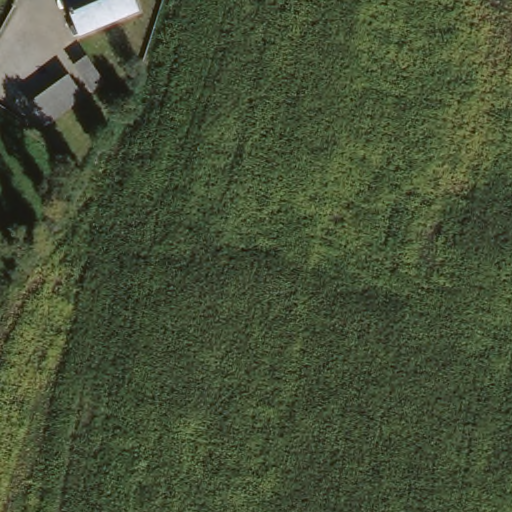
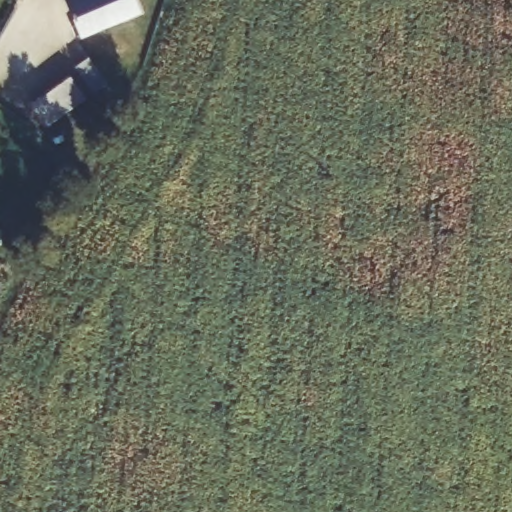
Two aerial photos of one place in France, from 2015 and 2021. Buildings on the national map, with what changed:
unchanged [(88,34),(70,0),(139,0),(143,7),(88,34)]
unchanged [(103,75),(87,82),(77,61),(93,53),(103,75)]
unchanged [(89,96),(49,123),(35,103),(73,76),(89,96)]

